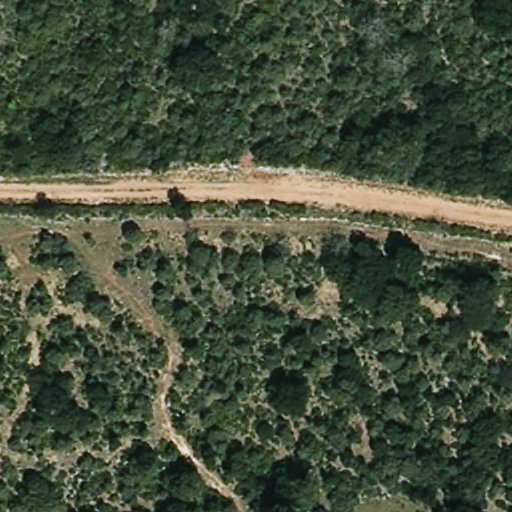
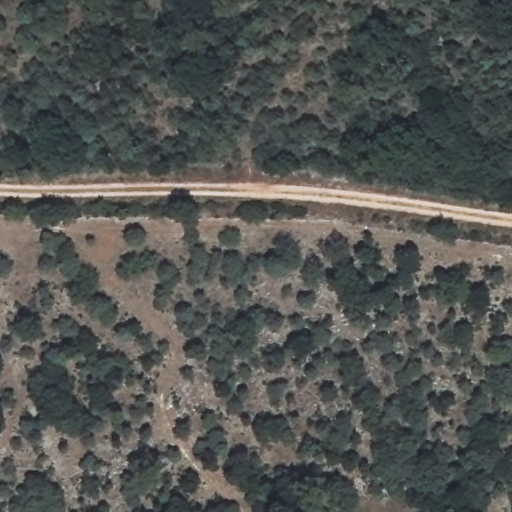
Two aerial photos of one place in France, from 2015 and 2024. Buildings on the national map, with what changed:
[]

